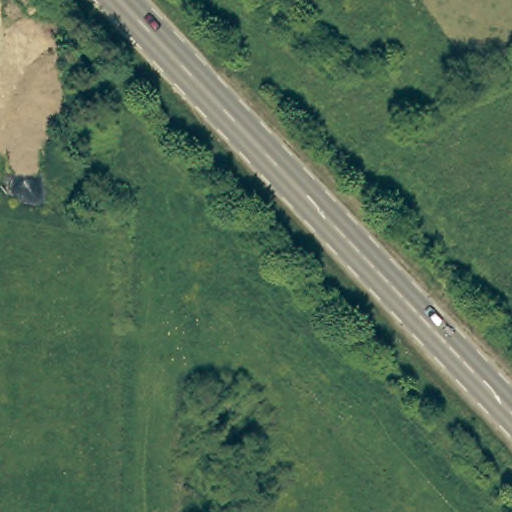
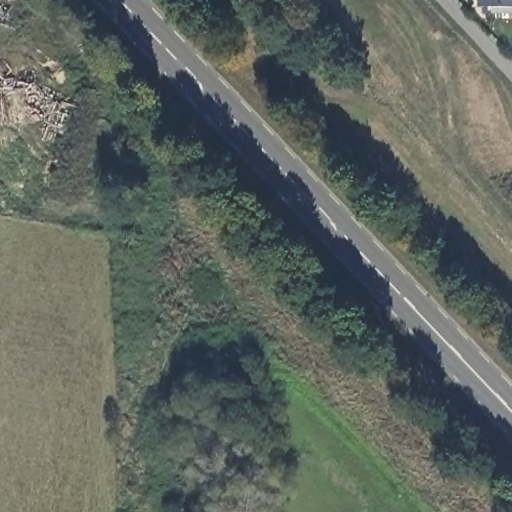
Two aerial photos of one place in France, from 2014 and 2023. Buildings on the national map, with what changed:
new [(495,14),(495,8),(483,8),(483,0),(512,0),(512,14),(495,14)]

